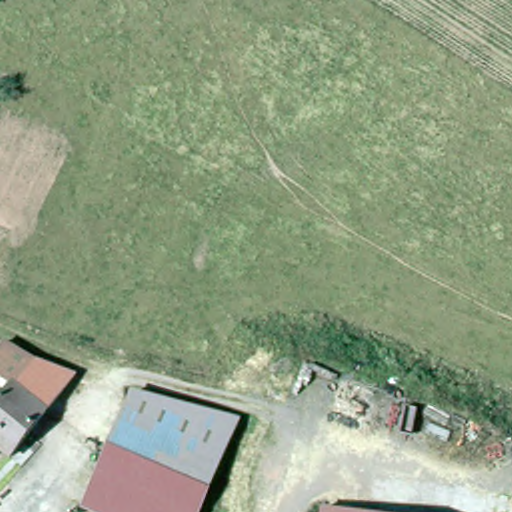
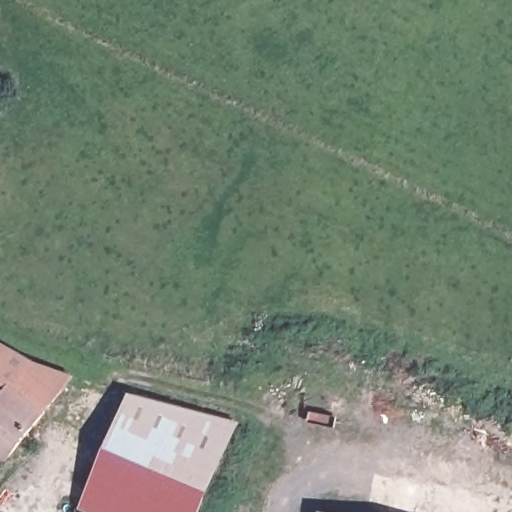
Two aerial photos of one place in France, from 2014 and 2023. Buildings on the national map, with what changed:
unchanged [(9,386),(0,380),(0,353),(8,343),(63,381),(13,456),(0,447),(0,400),(9,386)]
unchanged [(143,377),(234,417),(233,420),(230,434),(196,512),(188,512),(98,473),(136,394),(143,377)]
unchanged [(83,507),(98,473),(188,512),(93,512),(83,507)]
unchanged [(318,505),(353,512),(317,512),(318,505)]

